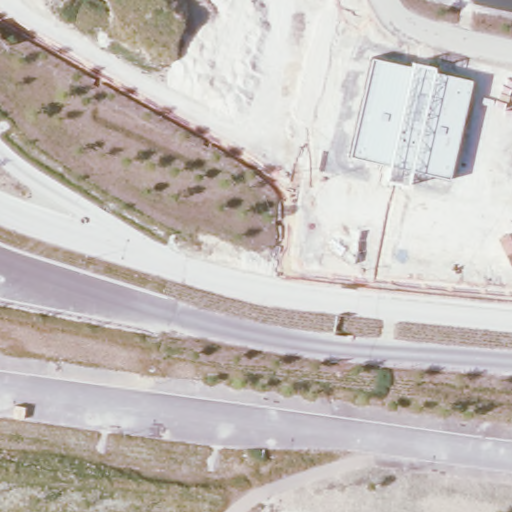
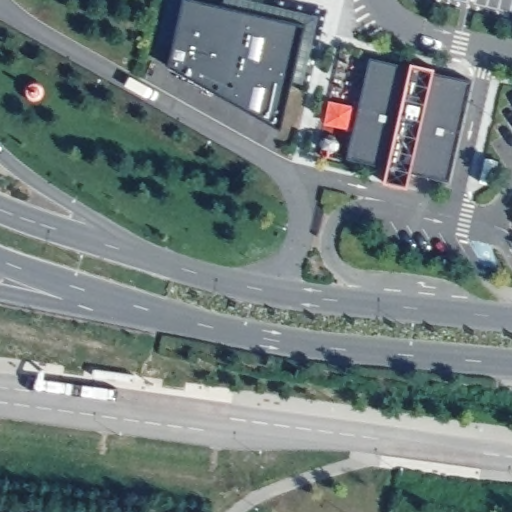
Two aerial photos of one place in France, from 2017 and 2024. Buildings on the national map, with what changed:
new [(280,129),(168,65),(183,0),(203,0),(305,23),(280,129)]
unchanged [(351,155),(372,59),(470,81),(450,178),(351,155)]

